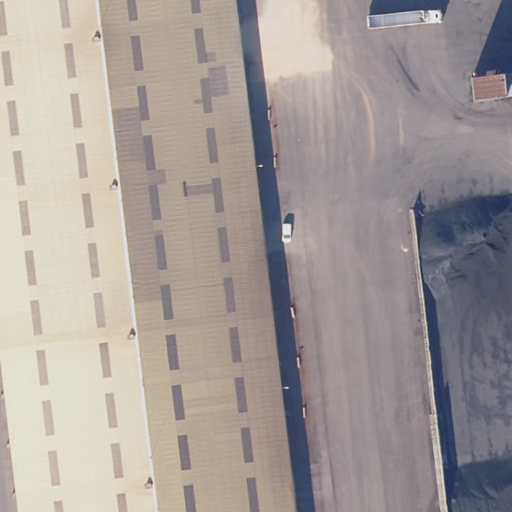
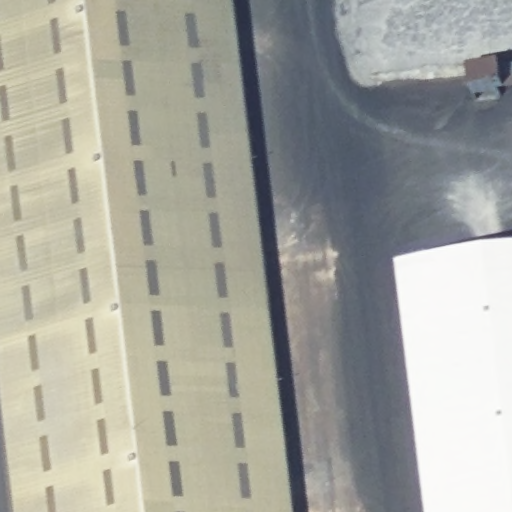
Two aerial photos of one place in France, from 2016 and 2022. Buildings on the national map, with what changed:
unchanged [(18,512),(0,365),(0,0),(233,0),(294,512),(18,512)]
unchanged [(473,97),(471,74),(512,70),(512,94),(473,97)]
new [(433,512),(402,272),(512,260),(512,512),(433,512)]

